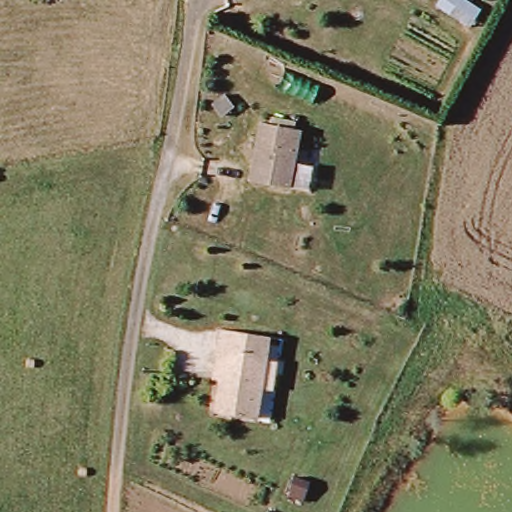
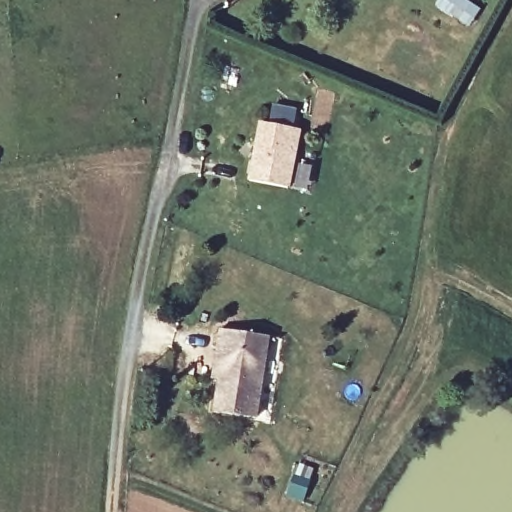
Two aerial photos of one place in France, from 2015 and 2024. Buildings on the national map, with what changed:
unchanged [(292,190),(254,182),(264,124),(302,131),(292,190)]
unchanged [(273,334),(263,416),(220,410),(225,377),(217,376),(222,343),(224,326),(273,334)]

